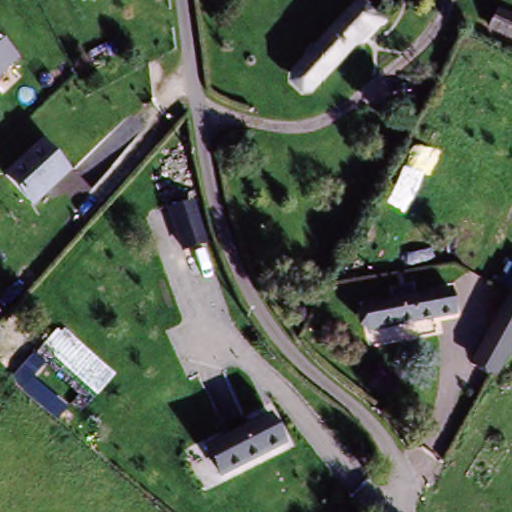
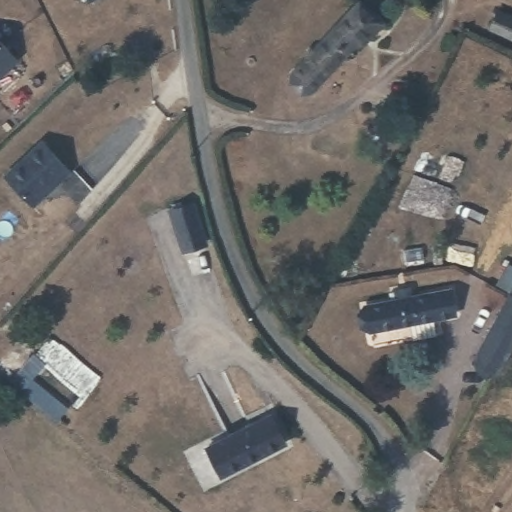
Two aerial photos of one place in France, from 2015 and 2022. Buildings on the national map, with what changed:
unchanged [(364,48),(358,44),(309,96),(294,92),(285,85),(291,67),(354,0),(363,0),(387,24),(364,48)]
unchanged [(512,42),(483,27),(492,8),(512,18),(512,42)]
unchanged [(19,59),(0,78),(0,40),(19,59)]
unchanged [(48,143),(74,174),(31,209),(6,179),(48,143)]
unchanged [(213,246),(189,252),(175,204),(196,197),(213,246)]
unchanged [(494,285),(506,265),(512,269),(512,337),(492,372),(469,359),(509,293),(506,291),(494,285)]
unchanged [(450,314),(363,332),(358,305),(391,298),(389,287),(405,285),(407,295),(445,286),(450,314)]
unchanged [(98,395),(43,348),(61,325),(116,374),(98,395)]
unchanged [(58,420),(10,377),(34,351),(46,363),(33,376),(67,407),(58,420)]
unchanged [(271,414),(288,439),(230,476),(213,450),(271,414)]

